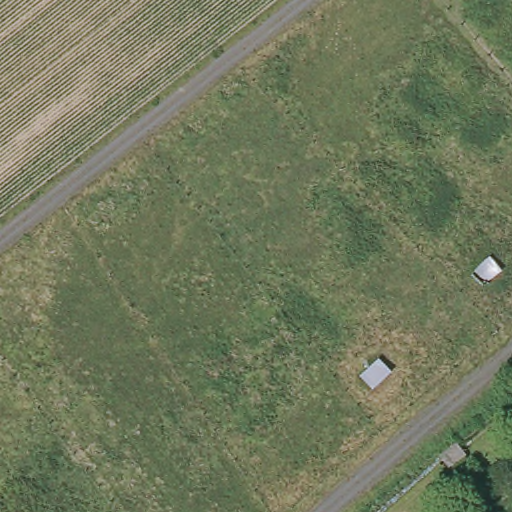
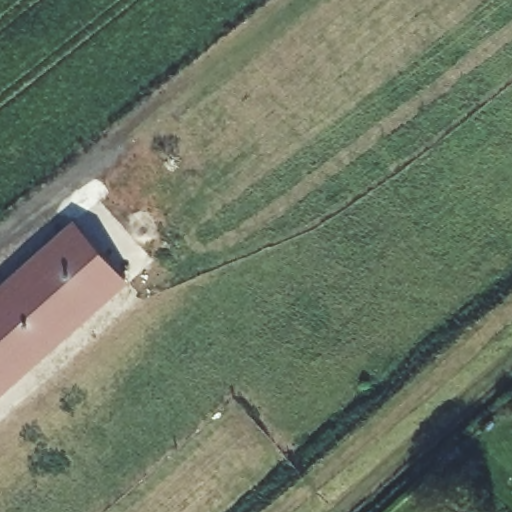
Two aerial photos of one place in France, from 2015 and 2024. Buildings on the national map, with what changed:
new [(74,220),(130,283),(0,398),(0,285),(74,220)]
unchanged [(467,455),(448,471),(439,460),(456,444),(467,455)]

